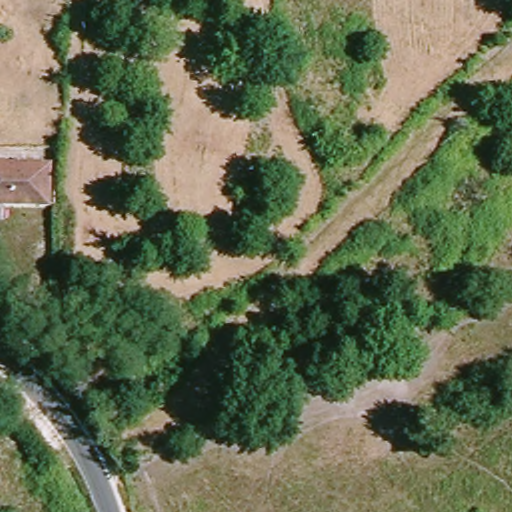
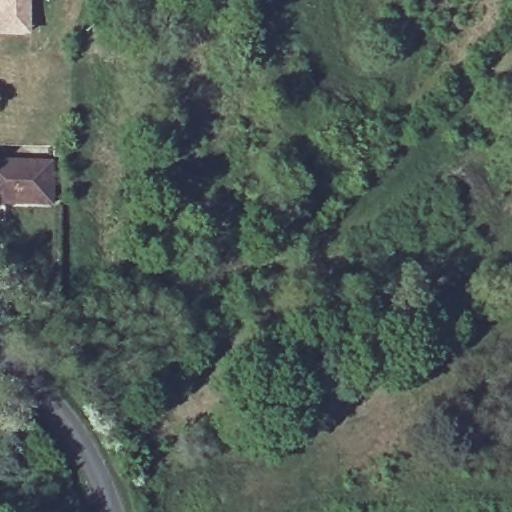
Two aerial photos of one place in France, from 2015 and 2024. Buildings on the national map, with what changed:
new [(26,33),(0,32),(0,0),(28,0),(26,33)]
unchanged [(50,168),(47,212),(0,210),(0,167),(50,168)]

